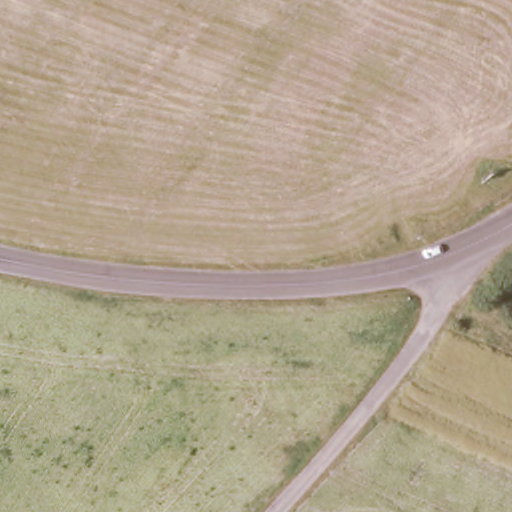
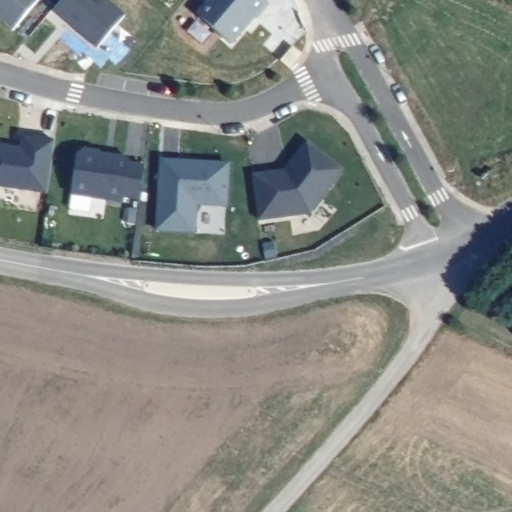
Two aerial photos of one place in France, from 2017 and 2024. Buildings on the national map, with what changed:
new [(40,2),(12,34),(0,24),(0,0),(38,0),(40,2)]
new [(53,11),(62,0),(106,0),(124,16),(97,49),(53,11)]
new [(197,14),(209,0),(264,0),(269,5),(256,21),(255,20),(232,46),(197,14)]
new [(292,50),(300,57),(288,72),(280,65),(292,50)]
new [(0,187),(0,143),(20,147),(22,136),(54,141),(47,195),(0,187)]
new [(287,176),(293,168),(291,167),(305,149),(338,175),(307,216),(257,223),(250,181),(287,176)]
new [(75,159),(81,154),(98,157),(98,160),(127,164),(127,169),(143,171),(139,202),(122,201),(122,206),(70,198),(75,159)]
new [(161,160),(230,164),(227,208),(197,207),(195,235),(156,231),(161,160)]

